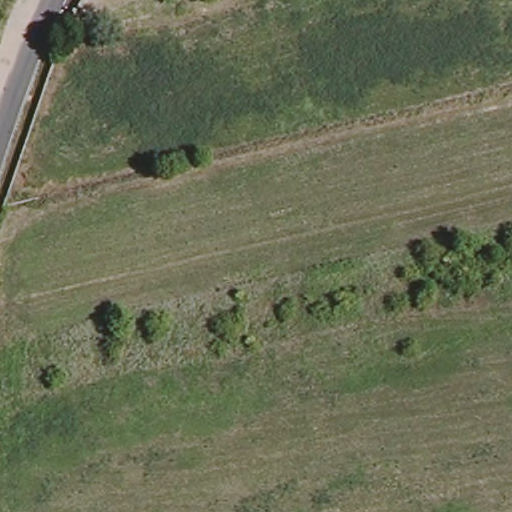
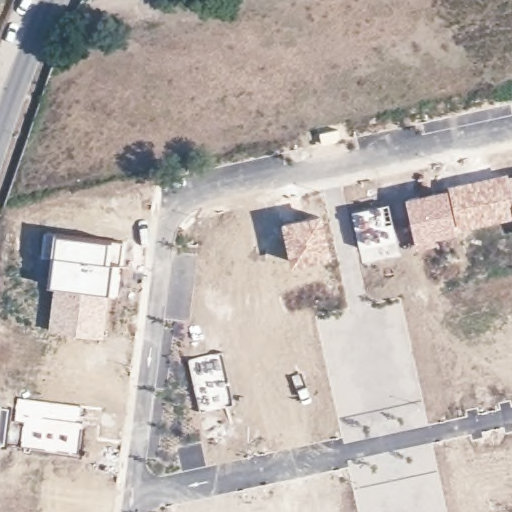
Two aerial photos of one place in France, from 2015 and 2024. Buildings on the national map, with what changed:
new [(507,173),(512,173),(512,218),(433,238),(435,245),(415,249),(403,195),(506,171),(507,173)]
new [(388,202),(400,254),(361,262),(349,210),(388,202)]
new [(321,212),(331,255),(290,265),(279,220),(321,212)]
new [(53,232),(121,240),(114,292),(108,291),(51,285),(48,284),(53,232)]
new [(51,285),(108,291),(103,337),(47,330),(51,285)]
new [(231,403),(199,410),(189,358),(220,351),(231,403)]
new [(16,397),(81,405),(78,453),(20,445),(22,422),(13,420),(16,397)]

